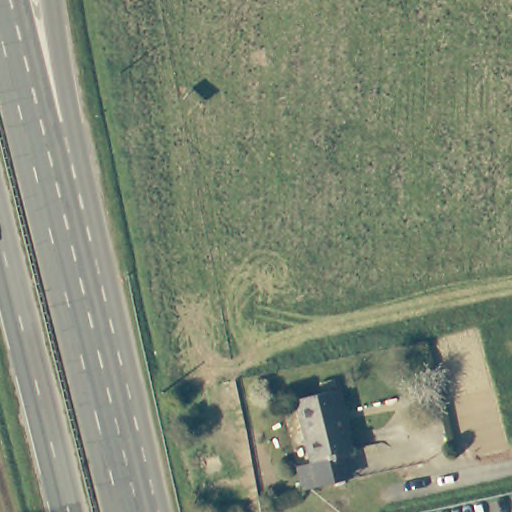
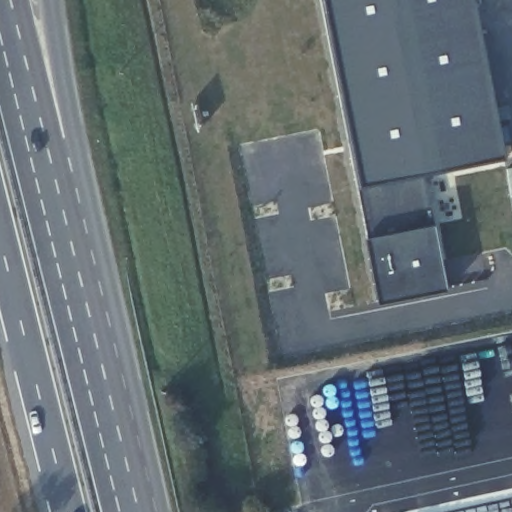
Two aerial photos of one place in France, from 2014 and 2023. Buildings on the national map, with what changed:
new [(424,174),(445,285),(445,290),(375,302),(319,0),(475,0),(504,159),(424,174)]
unchanged [(298,460),(315,456),(298,397),(342,387),(360,450),(341,455),(346,476),(314,483),(303,485),(298,460)]

